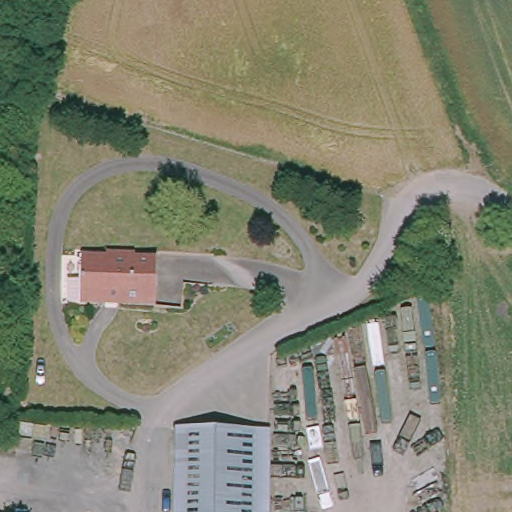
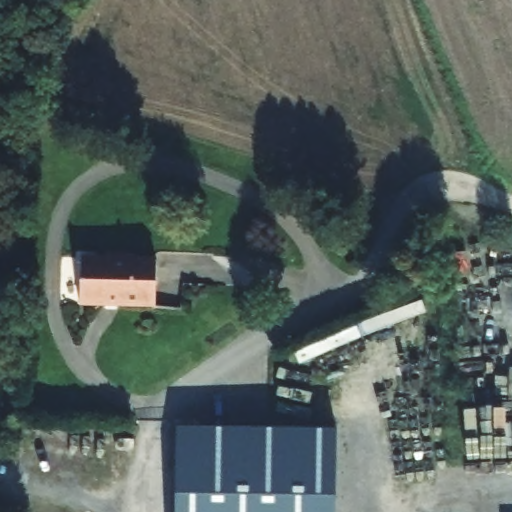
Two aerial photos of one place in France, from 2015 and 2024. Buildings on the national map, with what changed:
unchanged [(116,306),(117,303),(75,302),(76,257),(102,258),(102,253),(129,254),(129,259),(152,259),(150,307),(116,306)]
new [(295,352),(355,325),(422,300),(427,312),(364,337),(300,365),(295,352)]
unchanged [(268,512),(175,512),(177,428),(269,430),(268,512)]
new [(269,430),(337,429),(336,512),(268,512),(269,430)]

